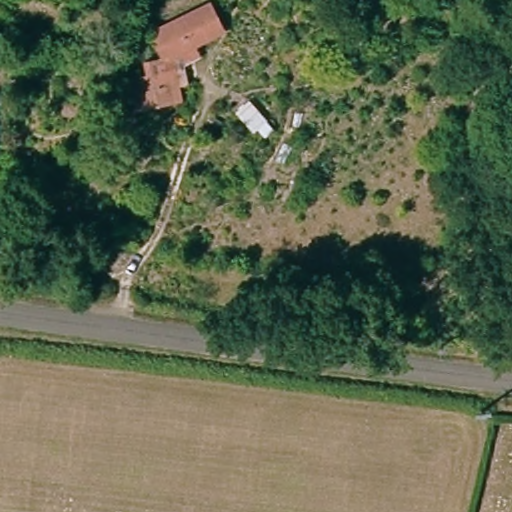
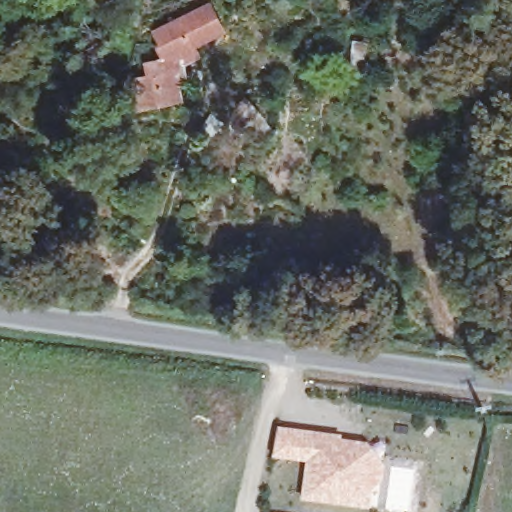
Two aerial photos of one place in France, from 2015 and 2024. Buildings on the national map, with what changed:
unchanged [(181,85),(185,100),(176,102),(148,109),(145,109),(138,81),(149,78),(157,76),(154,61),(168,58),(154,35),(190,15),(210,4),(224,28),(194,44),(196,48),(200,55),(185,63),(187,69),(190,83),(181,85)]
new [(341,436),(340,440),(366,444),(384,469),(381,484),(372,491),(369,510),(299,501),(304,462),(273,458),(277,428),(341,436)]

